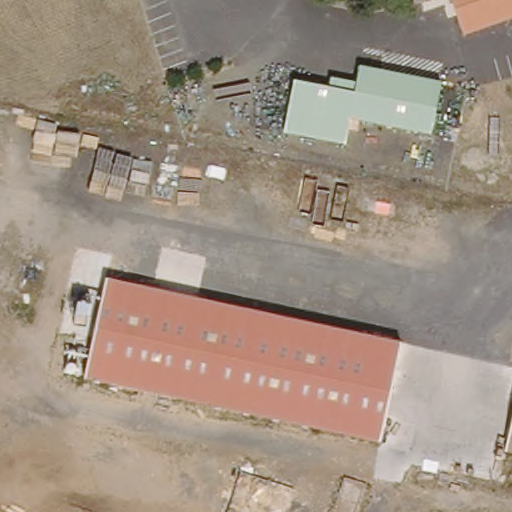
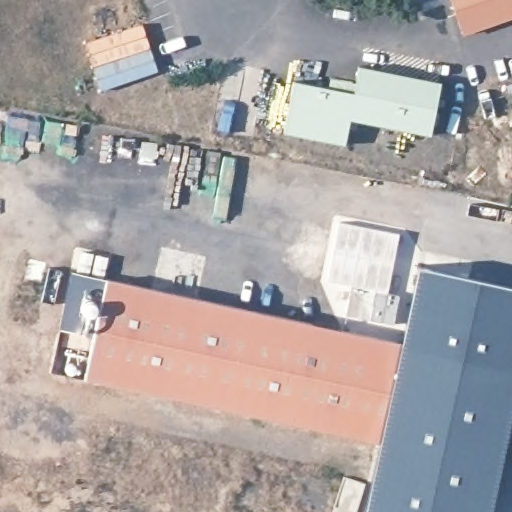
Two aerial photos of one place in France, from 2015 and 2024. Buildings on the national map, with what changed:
unchanged [(462,36),(450,0),(512,0),(512,19),(462,36)]
unchanged [(297,77),(331,83),(332,74),(359,80),(361,62),(446,79),(437,133),(356,116),(350,140),(287,126),(297,77)]
new [(401,233),(389,293),(401,295),(395,325),(346,314),(352,287),(327,281),(339,222),(401,233)]
new [(489,447),(504,450),(491,512),(365,512),(381,439),(376,438),(396,339),(402,341),(419,264),(512,284),(512,367),(507,366),(489,447)]
unchanged [(376,438),(81,381),(103,281),(396,339),(376,438)]
unchanged [(489,447),(507,366),(512,367),(512,452),(489,447)]

